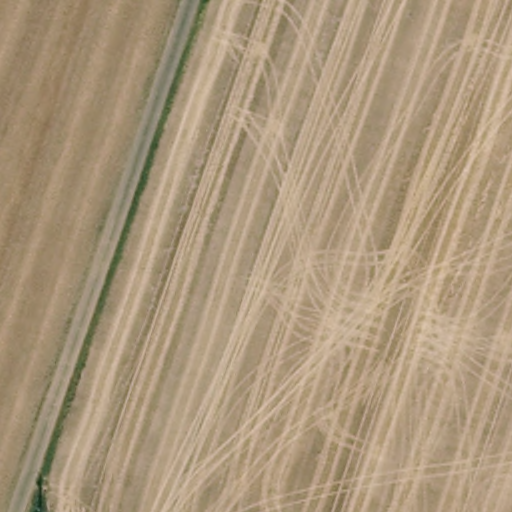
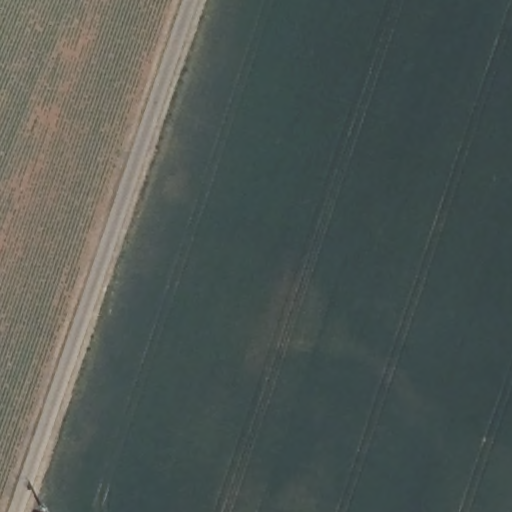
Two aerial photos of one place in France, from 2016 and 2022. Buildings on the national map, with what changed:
unchanged [(45,512),(41,512),(41,511),(45,512)]

